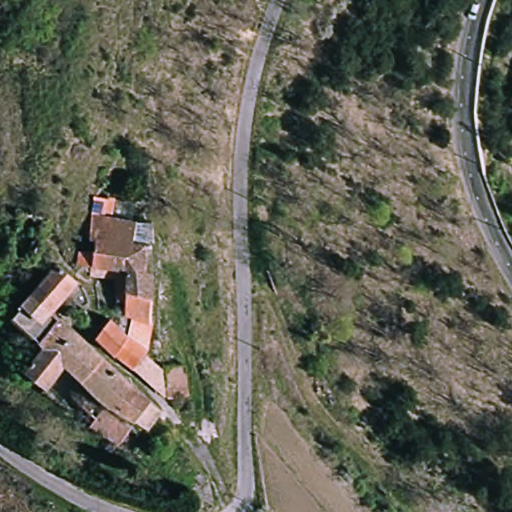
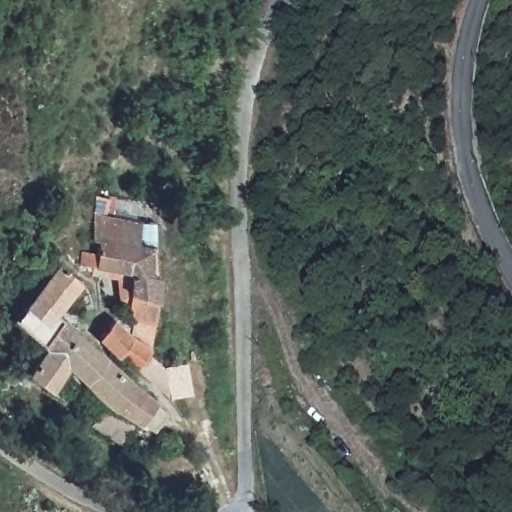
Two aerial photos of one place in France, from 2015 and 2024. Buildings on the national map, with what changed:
unchanged [(133,298),(134,273),(109,268),(107,244),(103,242),(110,194),(117,195),(148,203),(147,224),(157,224),(157,275),(162,276),(163,326),(133,317),(133,298)]
unchanged [(62,271),(79,289),(45,330),(25,316),(62,271)]
unchanged [(94,338),(109,318),(118,325),(129,333),(152,350),(139,371),(115,353),(94,338)]
unchanged [(35,365),(45,350),(64,326),(70,332),(75,335),(103,357),(83,382),(68,370),(53,391),(29,373),(35,365)]
unchanged [(148,394),(162,413),(148,430),(83,382),(103,357),(148,394)]
unchanged [(173,400),(164,363),(180,359),(189,396),(173,400)]
unchanged [(95,427),(111,408),(144,434),(130,452),(95,427)]
unchanged [(199,471),(206,479),(194,498),(185,492),(199,471)]

